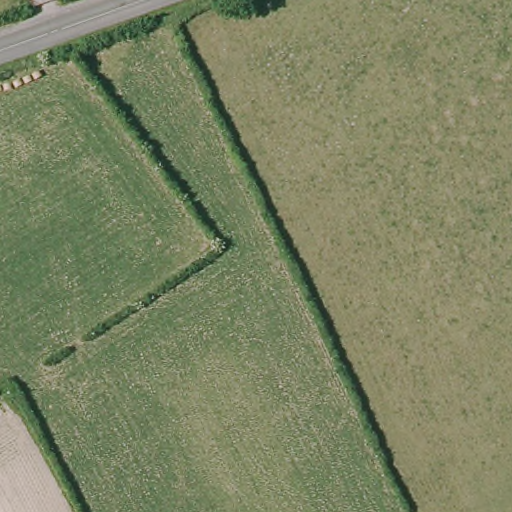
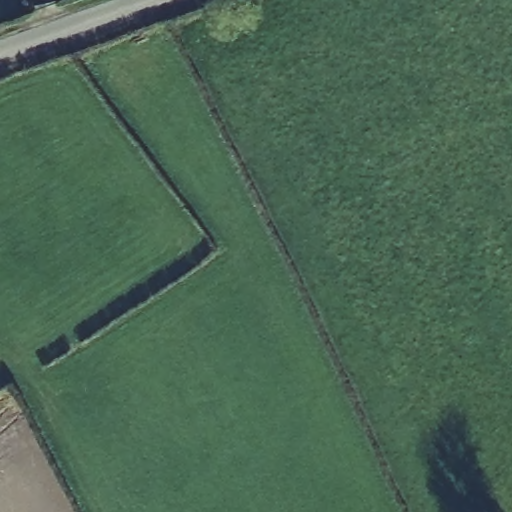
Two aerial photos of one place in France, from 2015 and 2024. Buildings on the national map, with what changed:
[]

